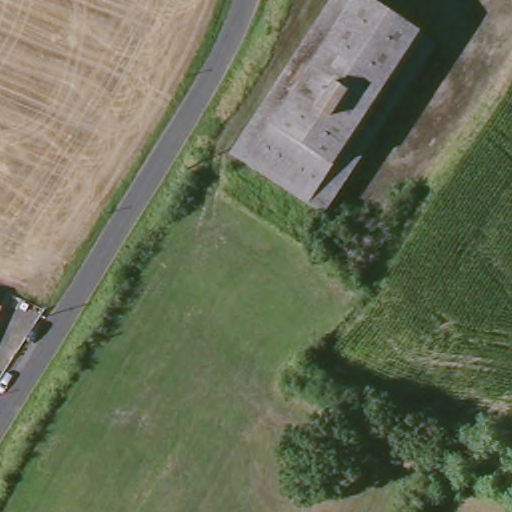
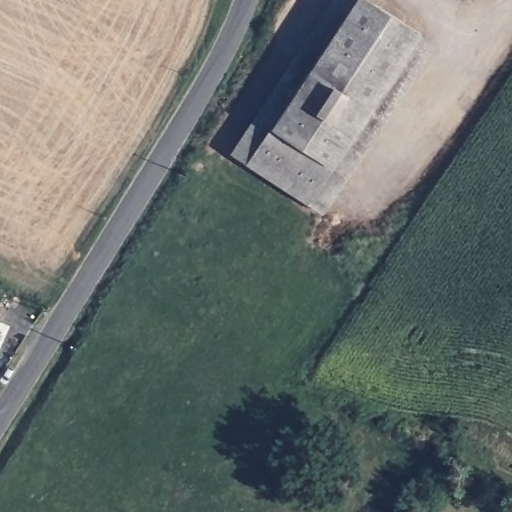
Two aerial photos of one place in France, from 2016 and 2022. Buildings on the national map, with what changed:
unchanged [(242,160),(226,150),(325,0),(347,0),(242,160)]
unchanged [(414,31),(301,199),(242,160),(347,0),(367,0),(414,31)]
unchanged [(429,41),(317,209),(301,199),(414,31),(429,41)]

